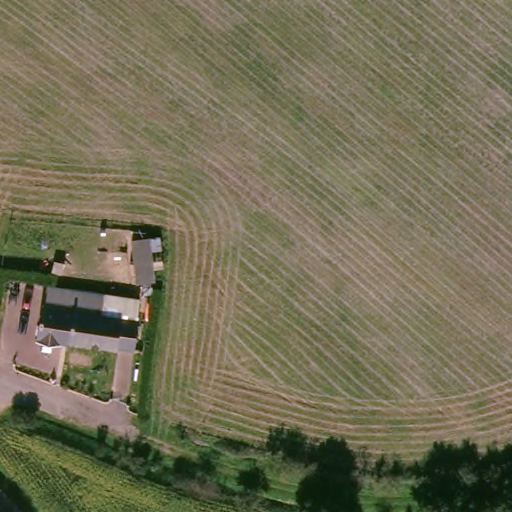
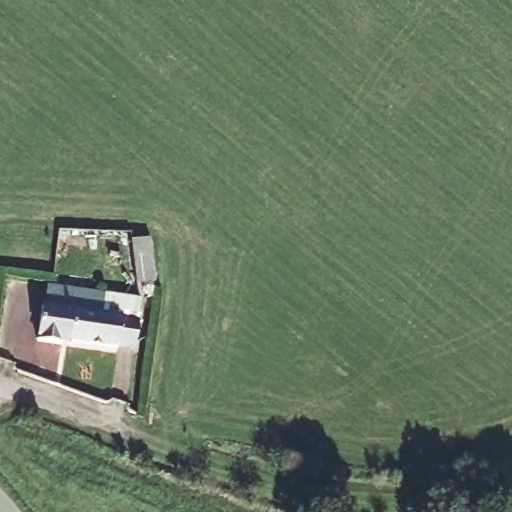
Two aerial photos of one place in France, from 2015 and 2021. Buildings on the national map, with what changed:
unchanged [(146,240),(150,284),(134,286),(127,243),(146,240)]
unchanged [(146,291),(140,345),(43,335),(50,302),(57,282),(146,291)]

